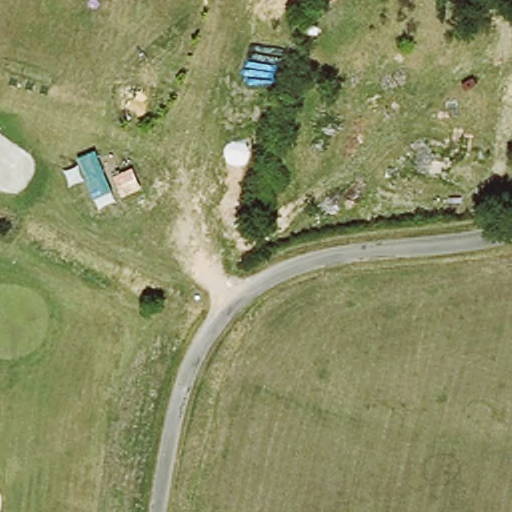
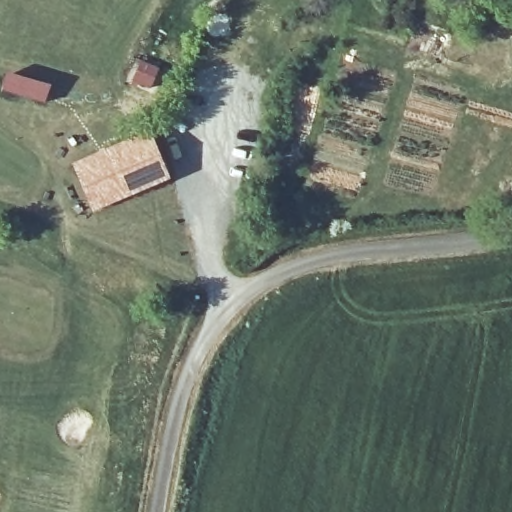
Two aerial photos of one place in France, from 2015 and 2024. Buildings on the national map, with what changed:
new [(144,62),(161,69),(153,88),(136,81),(144,62)]
new [(115,148),(152,131),(171,175),(134,191),(115,148)]
new [(82,162),(115,148),(134,191),(100,205),(82,162)]

